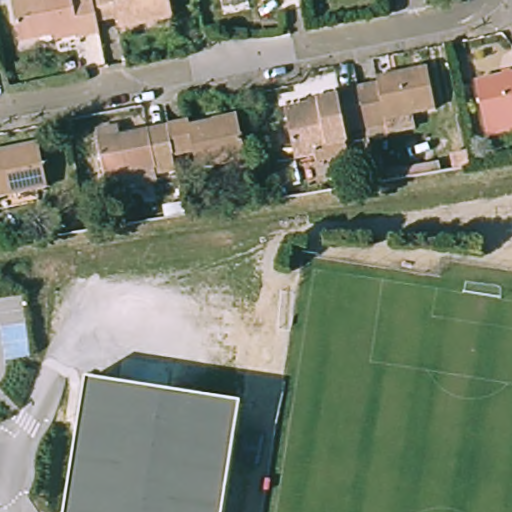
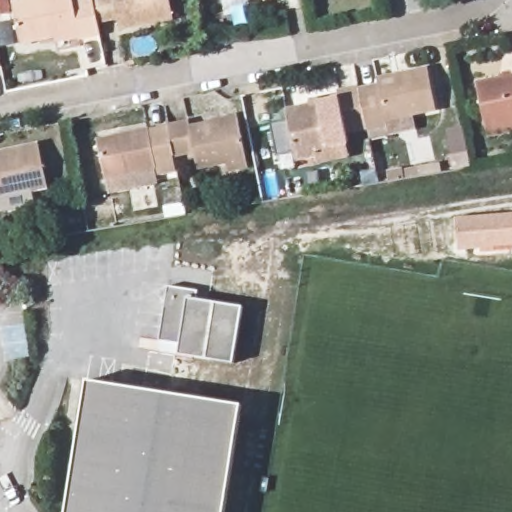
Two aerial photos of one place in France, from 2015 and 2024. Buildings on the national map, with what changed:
unchanged [(95,16),(100,37),(82,41),(80,32),(20,44),(12,2),(23,0),(92,0),(95,16)]
unchanged [(178,13),(155,18),(153,12),(121,19),(119,11),(95,16),(92,0),(175,0),(178,13)]
unchanged [(485,120),(475,72),(512,64),(512,115),(485,120)]
unchanged [(357,127),(350,89),(386,82),(387,76),(415,70),(422,111),(377,119),(377,127),(358,130),(357,127)]
unchanged [(357,127),(336,130),(338,141),(308,147),(307,156),(290,158),(282,109),(328,100),(328,94),(350,89),(357,127)]
unchanged [(167,126),(186,122),(187,128),(234,120),(242,155),(195,165),(190,148),(172,152),(167,126)]
unchanged [(153,157),(157,169),(108,180),(100,147),(122,141),(122,135),(167,126),(172,152),(153,157)]
unchanged [(42,186),(0,194),(0,150),(34,144),(42,186)]
new [(482,253),(481,249),(458,250),(456,217),(512,212),(512,250),(482,253)]
new [(167,286),(198,291),(197,299),(243,306),(233,363),(177,355),(180,343),(157,340),(167,286)]
unchanged [(63,512),(83,381),(240,406),(222,512),(63,512)]

